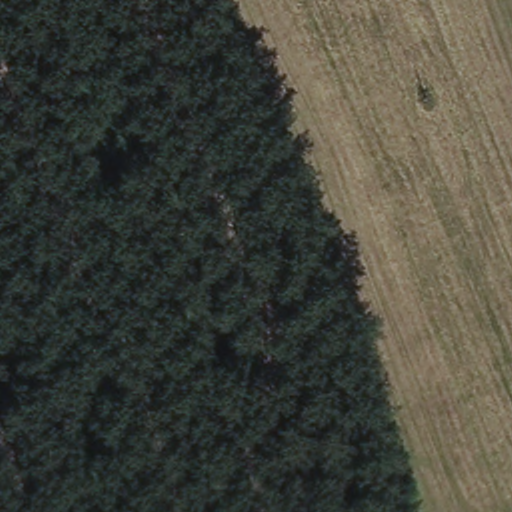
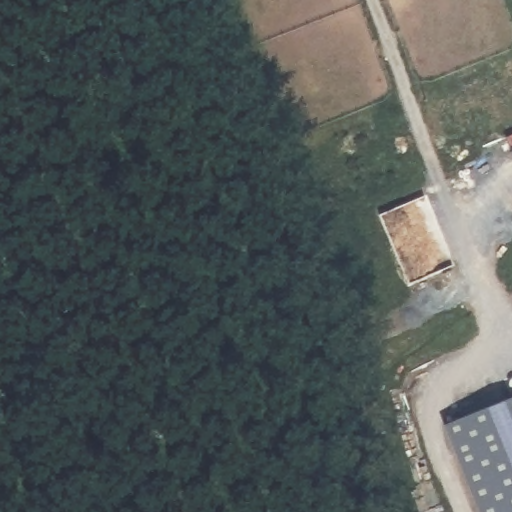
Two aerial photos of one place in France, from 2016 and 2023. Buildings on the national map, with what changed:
new [(512,394),(512,512),(482,512),(445,422),(512,394)]

